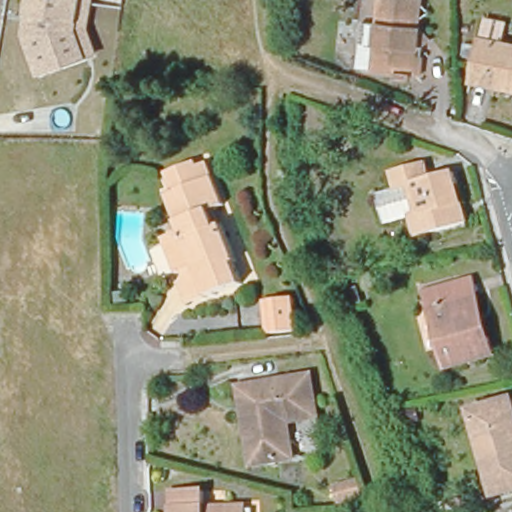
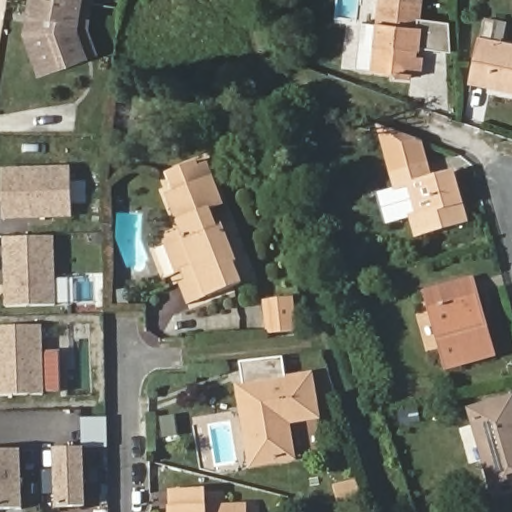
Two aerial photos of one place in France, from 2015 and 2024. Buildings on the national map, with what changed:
unchanged [(39,74),(24,34),(30,0),(78,0),(72,29),(83,56),(39,74)]
unchanged [(83,28),(92,53),(83,56),(72,29),(78,0),(88,0),(83,28)]
unchanged [(417,75),(410,74),(410,77),(396,75),(396,72),(372,69),(378,0),(416,0),(414,22),(415,17),(450,21),(452,50),(412,45),(412,54),(418,55),(417,75)]
unchanged [(478,47),(482,47),(487,29),(506,34),(502,52),(512,54),(512,98),(470,89),(478,47)]
new [(395,190),(382,129),(420,141),(425,165),(398,174),(402,188),(395,190)]
unchanged [(187,283),(192,281),(188,270),(183,273),(182,268),(181,268),(181,267),(181,266),(169,237),(177,234),(185,231),(175,207),(170,195),(174,194),(177,191),(172,180),(170,175),(197,164),(202,172),(211,169),(227,211),(221,214),(227,230),(236,250),(234,252),(247,284),(212,298),(196,305),(187,283)]
new [(69,165),(71,214),(2,215),(1,167),(69,165)]
unchanged [(402,188),(398,174),(425,165),(430,180),(456,172),(470,219),(421,234),(407,187),(402,188)]
new [(74,301),(54,301),(6,303),(4,235),(52,233),(53,274),(73,273),(74,301)]
unchanged [(457,370),(436,293),(462,285),(483,280),(500,338),(505,357),(457,370)]
unchanged [(295,332),(265,335),(262,297),(291,295),(295,332)]
new [(42,390),(0,392),(0,323),(39,322),(42,390)]
unchanged [(254,456),(249,418),(246,400),(244,385),(315,376),(321,416),(293,421),(298,459),(270,462),(255,464),(254,456)]
unchanged [(512,397),(512,399),(512,489),(493,495),(470,410),(512,397)]
new [(85,446),(87,505),(59,506),(57,447),(85,446)]
new [(23,506),(0,507),(0,448),(21,447),(23,506)]
unchanged [(360,497),(333,507),(326,487),(352,477),(360,497)]
unchanged [(210,512),(178,512),(178,507),(210,505),(210,512)]

